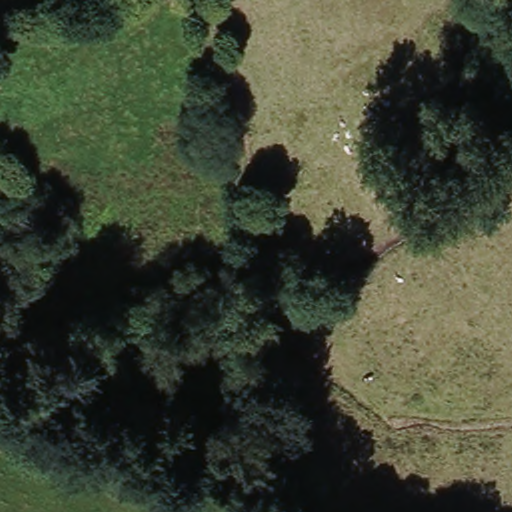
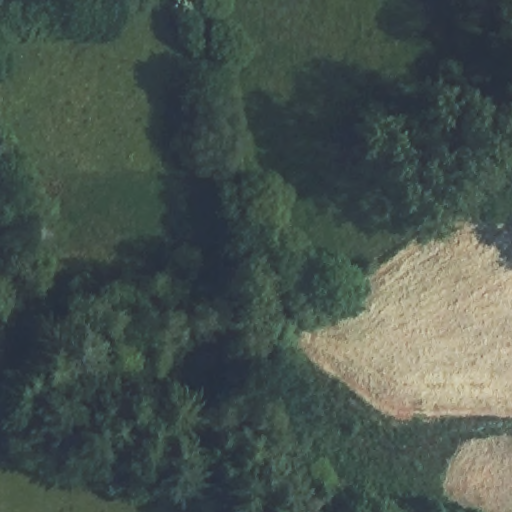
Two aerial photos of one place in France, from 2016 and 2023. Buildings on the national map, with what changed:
[]

